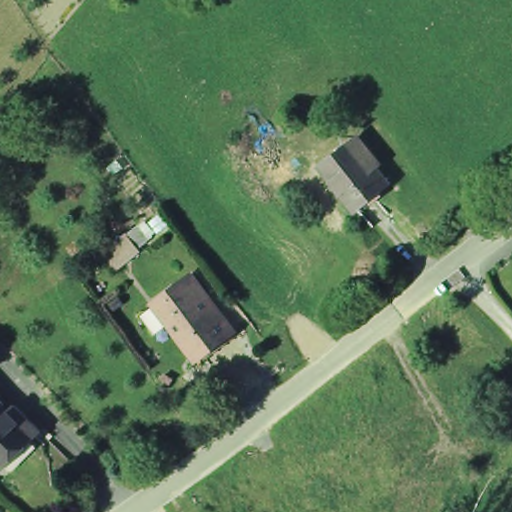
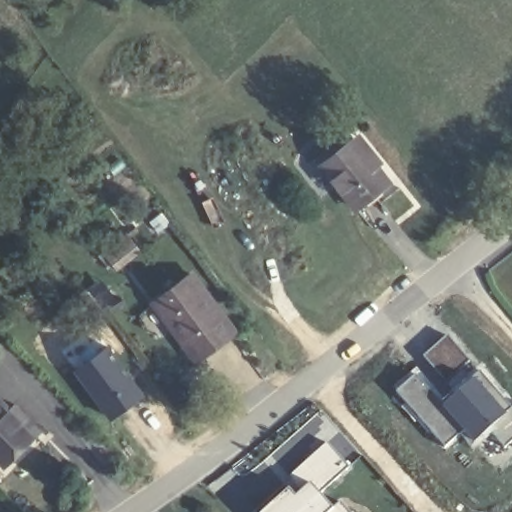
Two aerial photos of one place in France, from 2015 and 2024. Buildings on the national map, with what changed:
unchanged [(374,198),(355,214),(320,171),(352,144),(357,140),(379,167),(374,170),(385,183),(388,187),(374,198)]
unchanged [(157,304),(195,276),(235,330),(203,355),(198,358),(172,322),(157,304)]
new [(492,386),(512,409),(512,444),(505,451),(487,432),(474,446),(460,432),(444,448),(395,392),(415,376),(440,408),(457,395),(422,357),(447,334),(473,362),(465,369),(472,378),(479,372),(492,386)]
new [(112,420),(75,371),(108,346),(145,396),(112,420)]
unchanged [(9,410),(34,435),(29,440),(0,468),(0,412),(4,416),(9,410)]
demolished [(350,510),(297,448),(327,422),(380,483),(350,510)]
new [(319,496),(332,511),(341,503),(348,512),(264,512),(289,491),(295,498),(302,492),(291,477),(327,444),(350,467),(319,496)]
demolished [(318,512),(271,512),(297,489),(318,512)]

